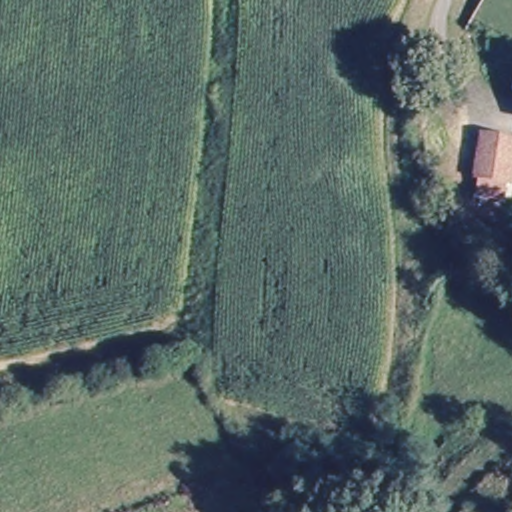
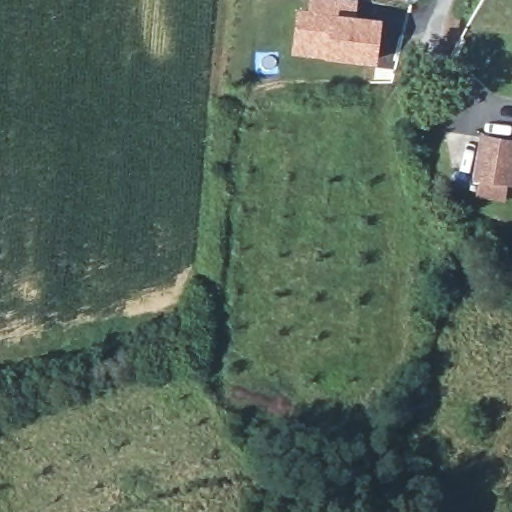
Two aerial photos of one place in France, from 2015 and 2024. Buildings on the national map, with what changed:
new [(310,0),(358,0),(357,16),(383,18),(377,65),(326,59),(292,55),(298,9),(309,10),(310,0)]
unchanged [(482,136),(512,142),(512,163),(512,166),(509,182),(475,177),(481,148),(482,136)]

